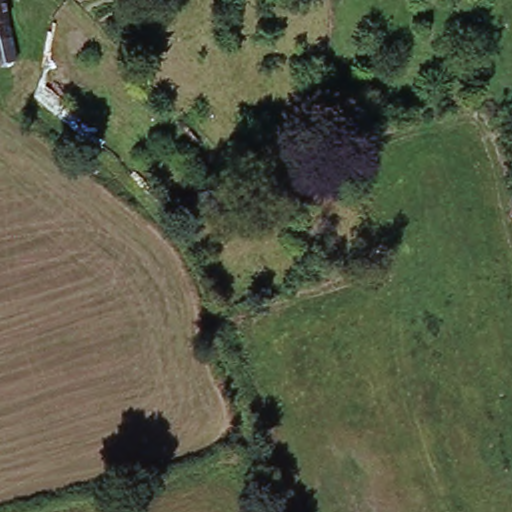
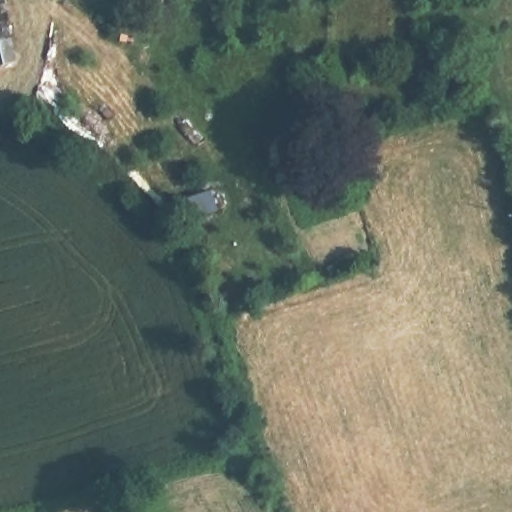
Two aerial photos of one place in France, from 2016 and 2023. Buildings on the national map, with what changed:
unchanged [(21,27),(0,32),(0,0),(13,0),(21,27)]
unchanged [(0,63),(0,32),(21,27),(34,64),(7,73),(3,71),(0,63)]
unchanged [(226,182),(233,204),(194,217),(187,194),(226,182)]

